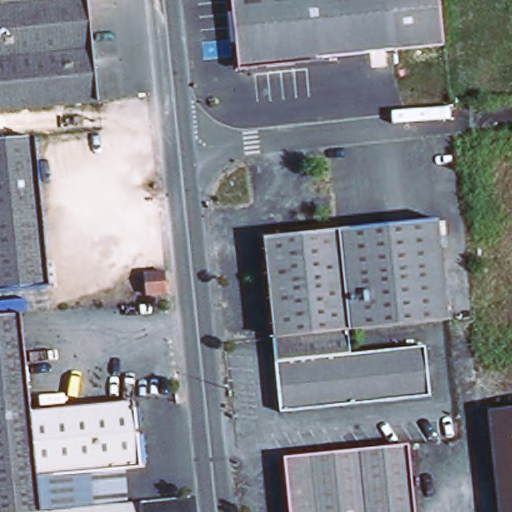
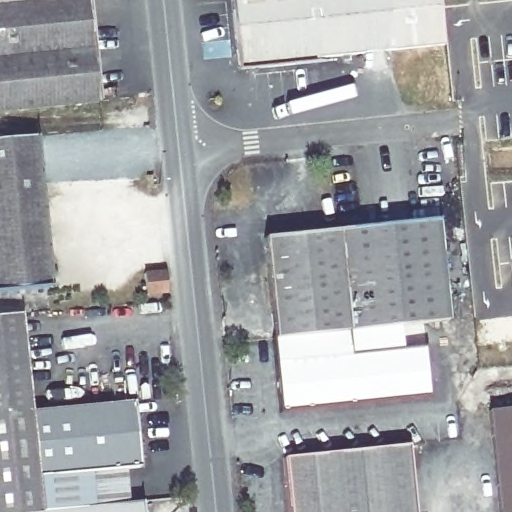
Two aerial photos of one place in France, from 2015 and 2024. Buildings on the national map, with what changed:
unchanged [(107,88),(0,99),(0,0),(98,0),(107,88)]
unchanged [(456,42),(325,59),(325,63),(247,72),(239,0),(451,0),(456,42)]
unchanged [(59,288),(0,294),(0,142),(41,137),(59,288)]
unchanged [(446,222),(456,322),(362,331),(351,232),(446,222)]
unchanged [(275,241),(351,232),(362,331),(285,339),(275,241)]
unchanged [(179,268),(182,289),(161,291),(160,270),(179,268)]
unchanged [(35,316),(45,415),(0,420),(0,319),(35,316)]
unchanged [(290,393),(285,339),(362,331),(364,352),(440,347),(442,377),(290,393)]
unchanged [(444,402),(293,418),(290,393),(442,377),(444,402)]
unchanged [(45,415),(149,403),(160,467),(136,470),(52,480),(55,512),(4,512),(0,478),(0,420),(45,415)]
unchanged [(512,411),(512,487),(504,412),(512,411)]
unchanged [(299,512),(293,457),(421,443),(429,512),(299,512)]
unchanged [(143,505),(71,512),(55,512),(52,480),(136,470),(143,505)]
unchanged [(157,504),(158,512),(71,512),(143,505),(157,504)]

